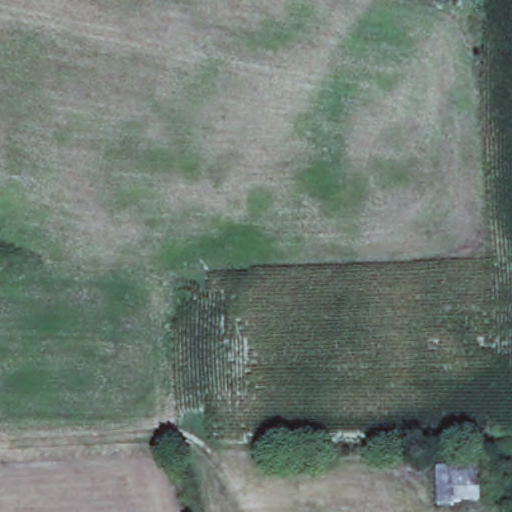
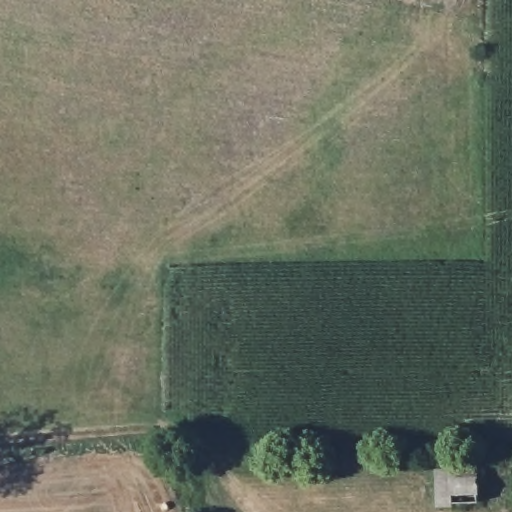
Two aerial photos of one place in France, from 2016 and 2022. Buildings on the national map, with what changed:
unchanged [(483,466),(482,507),(434,507),(432,467),(483,466)]

